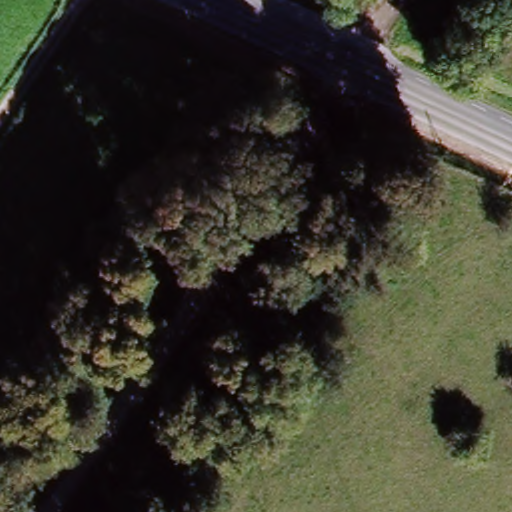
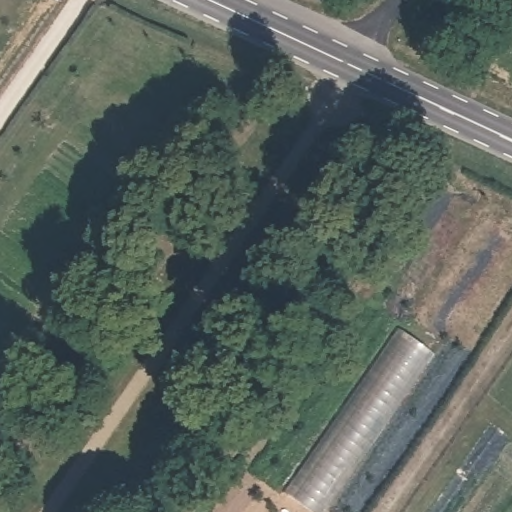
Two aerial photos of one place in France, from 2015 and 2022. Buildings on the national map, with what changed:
new [(396,328),(435,355),(326,512),(307,512),(282,491),(396,328)]

